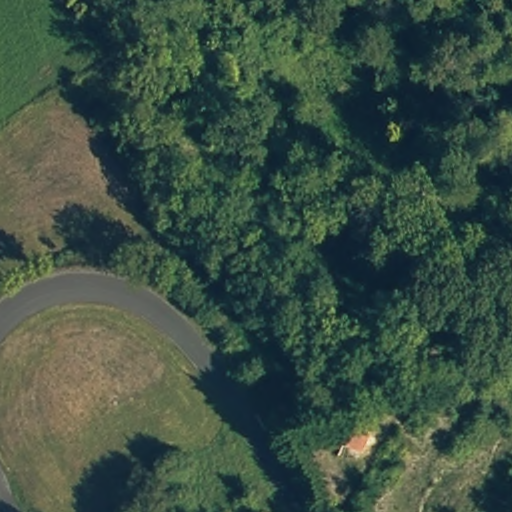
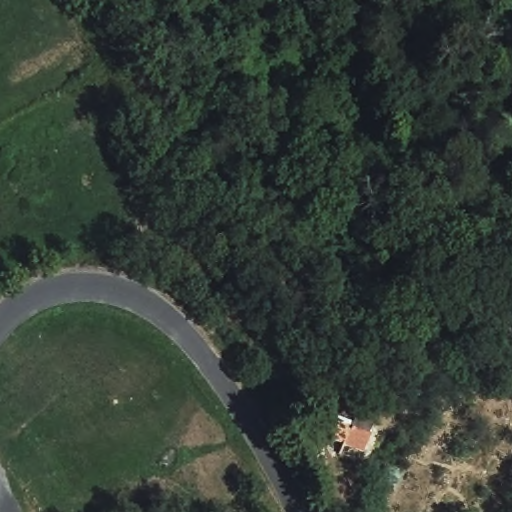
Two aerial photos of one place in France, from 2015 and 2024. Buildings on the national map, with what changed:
unchanged [(362,451),(325,435),(335,408),(372,421),(362,451)]

